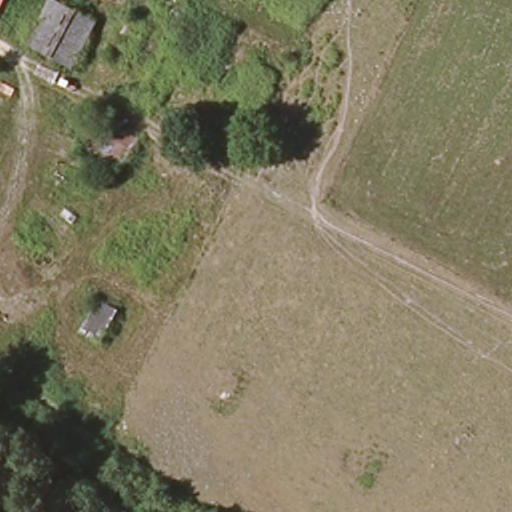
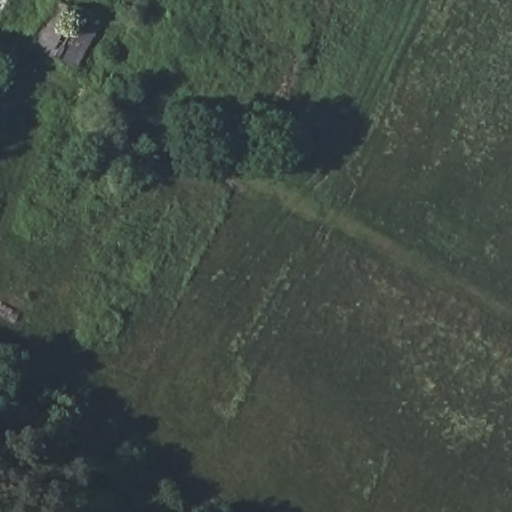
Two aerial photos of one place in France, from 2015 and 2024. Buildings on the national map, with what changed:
unchanged [(10,0),(0,21),(0,0),(10,0)]
unchanged [(98,25),(75,69),(35,46),(59,3),(98,25)]

